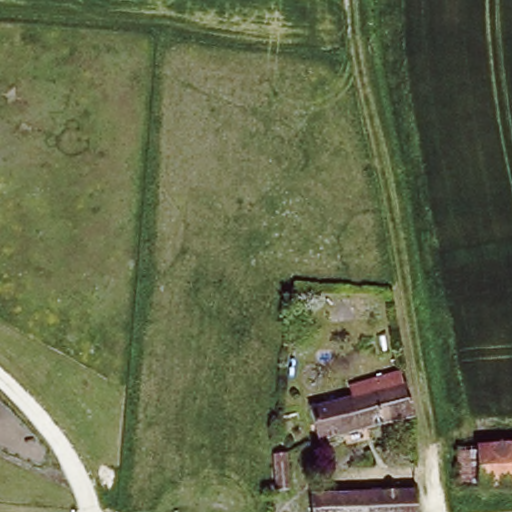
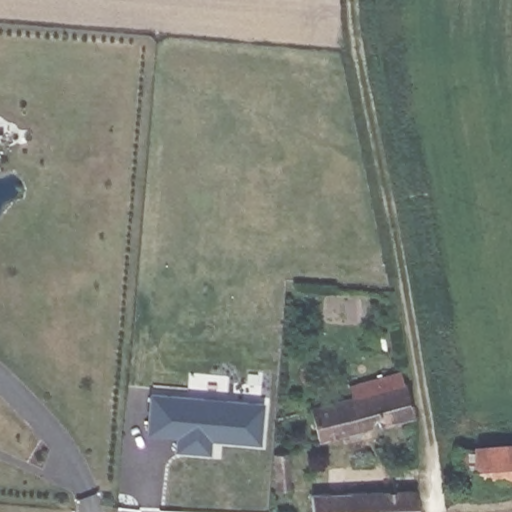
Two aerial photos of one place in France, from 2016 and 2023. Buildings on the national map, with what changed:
unchanged [(353,402),(350,389),(401,376),(404,389),(411,388),(417,419),(321,442),(314,412),(353,402)]
new [(264,444),(214,441),(213,454),(176,451),(178,437),(148,435),(151,394),(266,402),(264,444)]
unchanged [(462,447),(512,445),(512,486),(464,488),(462,447)]
unchanged [(283,456),(290,491),(276,494),(269,459),(283,456)]
unchanged [(420,493),(421,512),(315,512),(314,498),(420,493)]

